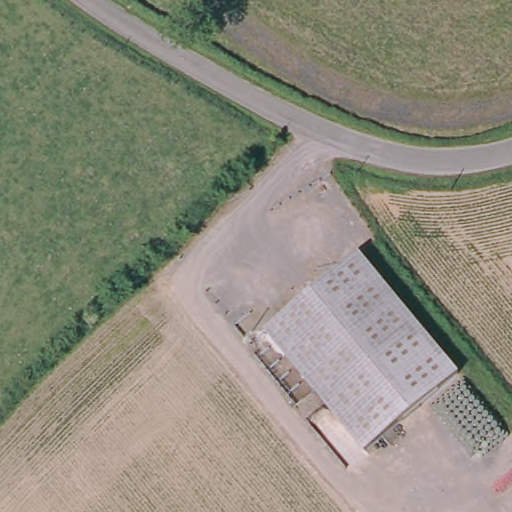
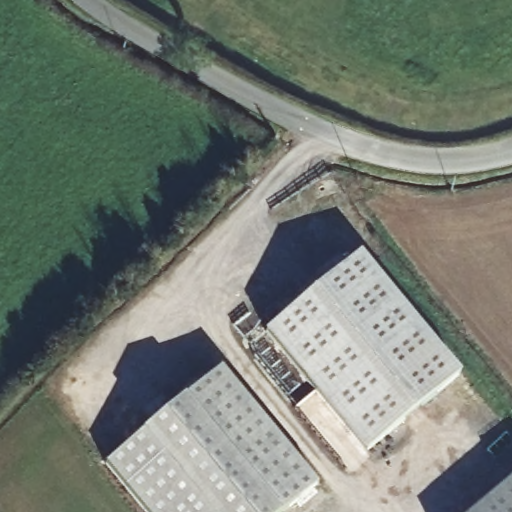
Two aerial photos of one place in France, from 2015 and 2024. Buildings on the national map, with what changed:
unchanged [(365,453),(265,332),(358,251),(461,374),(365,453)]
new [(216,364),(312,480),(274,512),(144,512),(101,460),(216,364)]
new [(512,479),(512,512),(473,512),(512,479)]

